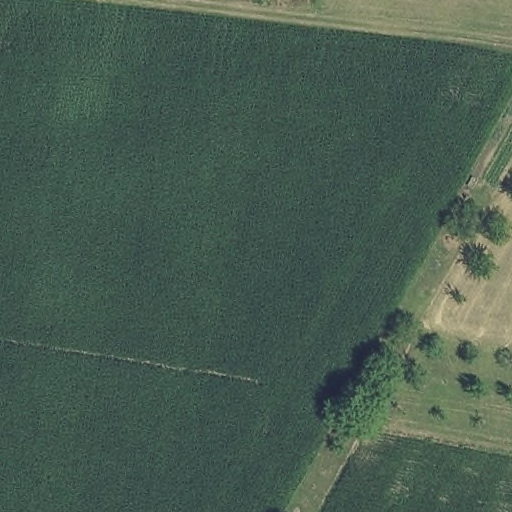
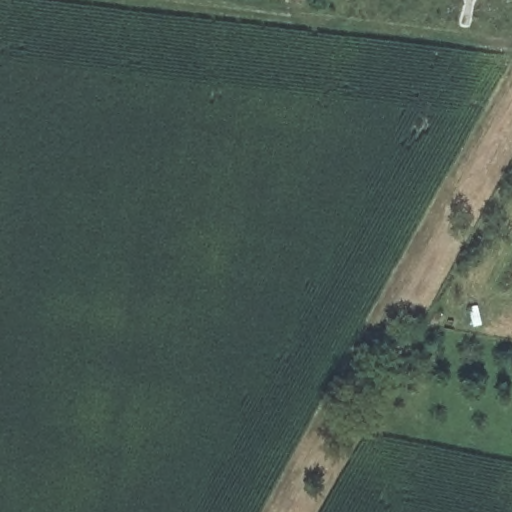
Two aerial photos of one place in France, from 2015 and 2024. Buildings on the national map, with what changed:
[]

